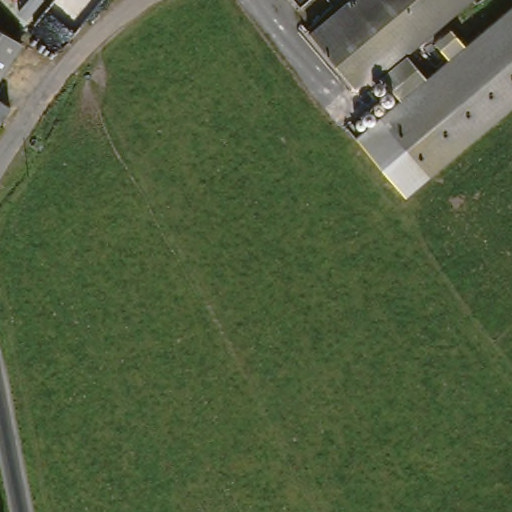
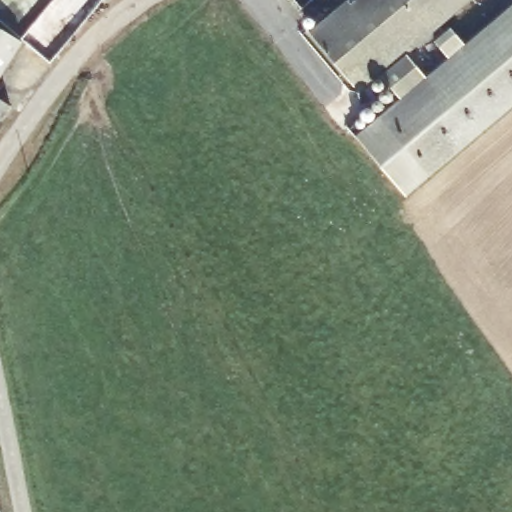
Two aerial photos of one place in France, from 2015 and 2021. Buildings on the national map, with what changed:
unchanged [(408,56),(428,80),(512,7),(512,111),(430,179),(372,114),(392,95),(380,79),(360,96),(310,30),(347,0),(475,0),(408,56)]
unchanged [(5,96),(17,103),(1,126),(0,125),(0,33),(26,49),(5,96)]

